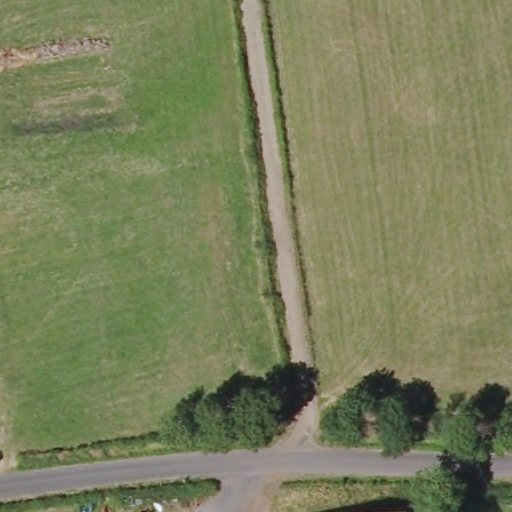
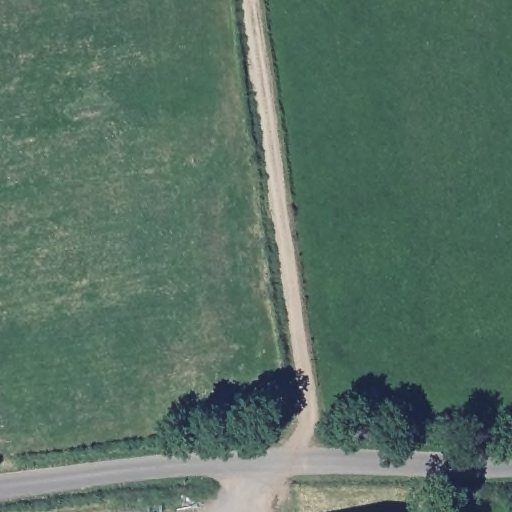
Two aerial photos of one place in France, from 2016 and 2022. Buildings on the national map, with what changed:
[]

